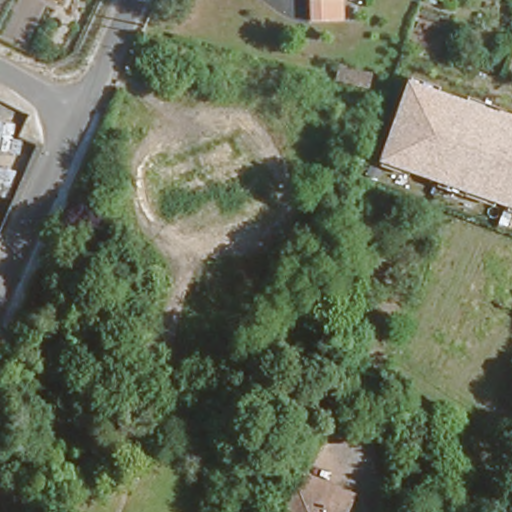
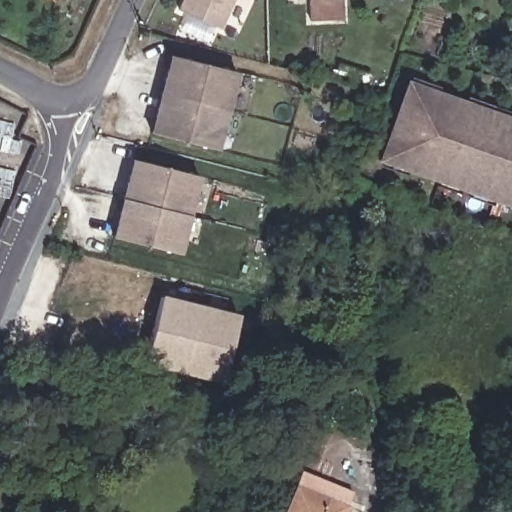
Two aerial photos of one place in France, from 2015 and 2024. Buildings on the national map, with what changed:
new [(182,0),(235,0),(221,30),(177,10),(182,0)]
unchanged [(311,0),(343,0),(343,20),(311,20),(311,0)]
new [(240,72),(220,149),(151,131),(170,54),(240,72)]
unchanged [(407,80),(512,117),(512,207),(378,160),(407,80)]
demolished [(223,213),(215,194),(167,214),(159,195),(150,173),(170,165),(198,153),(230,140),(250,189),(255,200),(246,203),(223,213)]
new [(201,176),(182,254),(113,235),(133,158),(201,176)]
new [(167,293),(206,303),(190,368),(174,364),(151,358),(154,348),(167,293)]
new [(203,372),(190,368),(206,303),(242,312),(229,367),(226,378),(203,372)]
unchanged [(349,476),(334,512),(279,512),(300,457),(349,476)]

